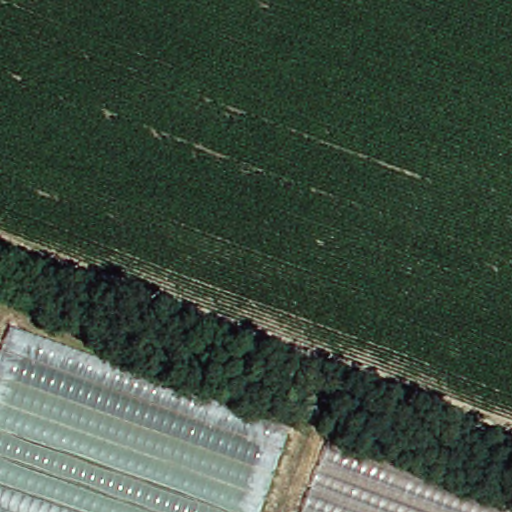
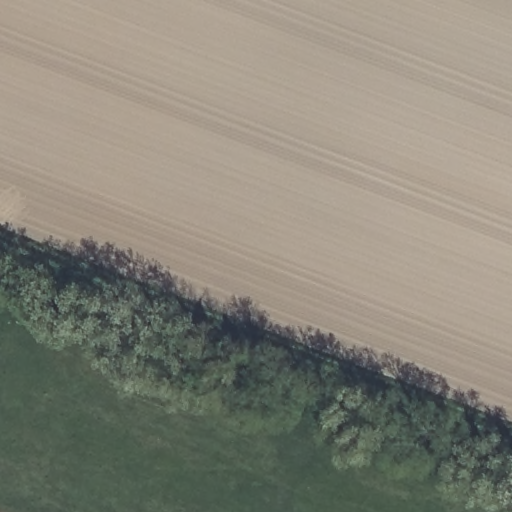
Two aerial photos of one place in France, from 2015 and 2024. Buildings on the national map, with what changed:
demolished [(5,321),(287,426),(255,512),(0,512),(0,335),(5,321)]
demolished [(314,436),(511,512),(289,512),(314,436)]

